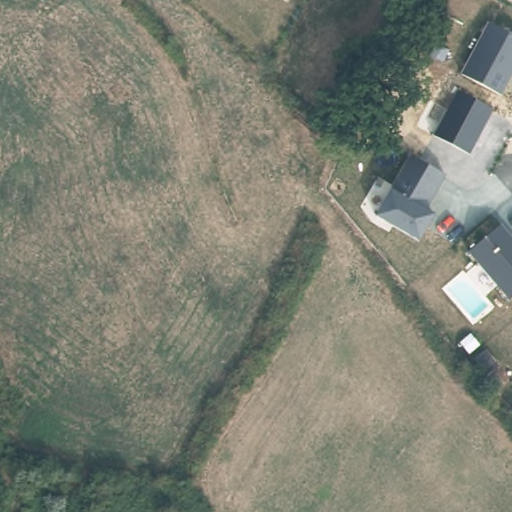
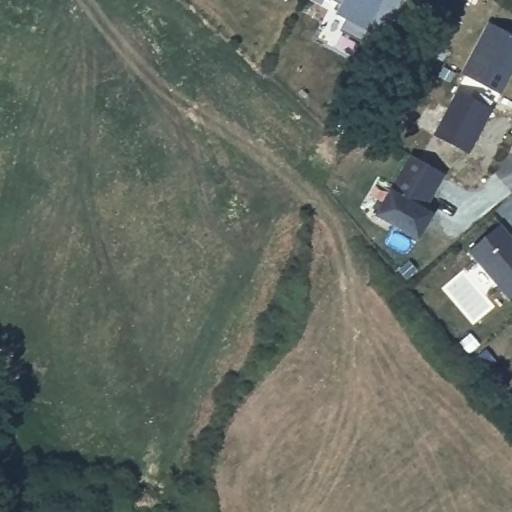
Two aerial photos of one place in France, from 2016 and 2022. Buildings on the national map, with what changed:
new [(341,32),(347,19),(337,15),(342,4),(334,0),(404,0),(380,48),(341,32)]
unchanged [(503,94),(461,72),(487,25),(512,37),(512,76),(503,94)]
unchanged [(471,155),(433,135),(455,92),(492,111),(471,155)]
unchanged [(447,175),(432,212),(436,215),(421,240),(378,217),(411,156),(447,175)]
unchanged [(507,300),(467,253),(500,229),(512,242),(512,295),(507,300)]

